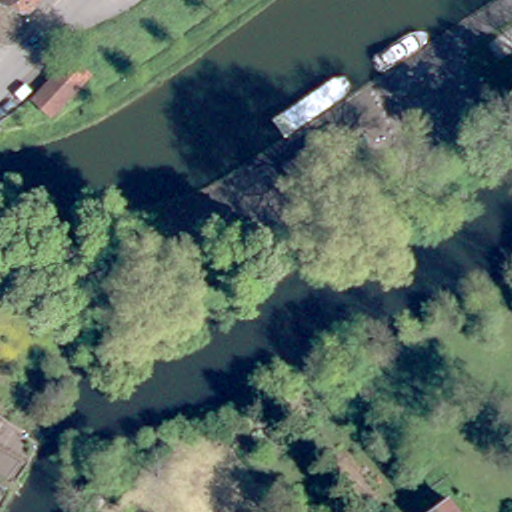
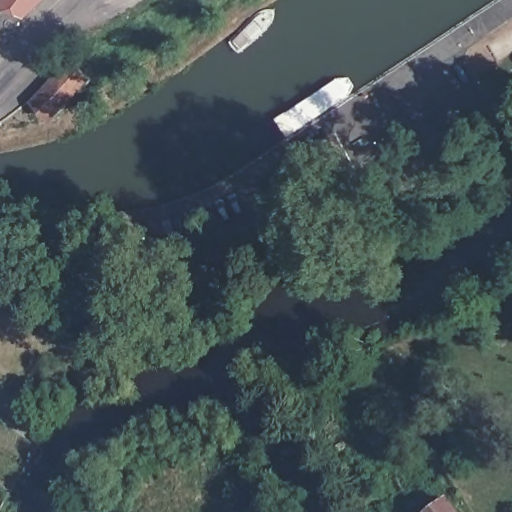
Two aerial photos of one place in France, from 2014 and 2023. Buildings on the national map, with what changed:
unchanged [(39,11),(16,0),(53,0),(39,11)]
unchanged [(58,121),(39,101),(79,62),(98,83),(58,121)]
unchanged [(304,195),(289,170),(306,160),(303,155),(339,133),(342,138),(358,163),(304,195)]
unchanged [(425,512),(423,509),(448,492),(462,512),(425,512)]

